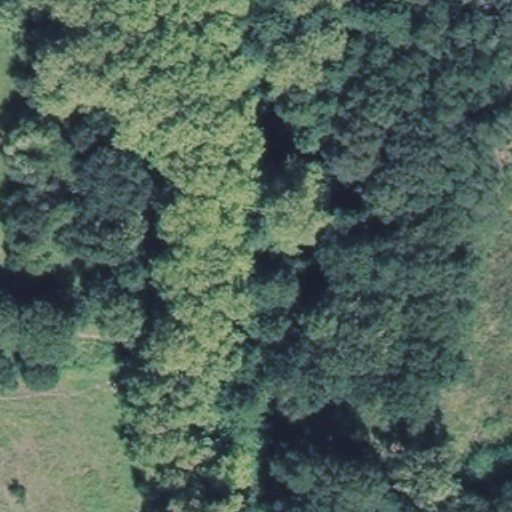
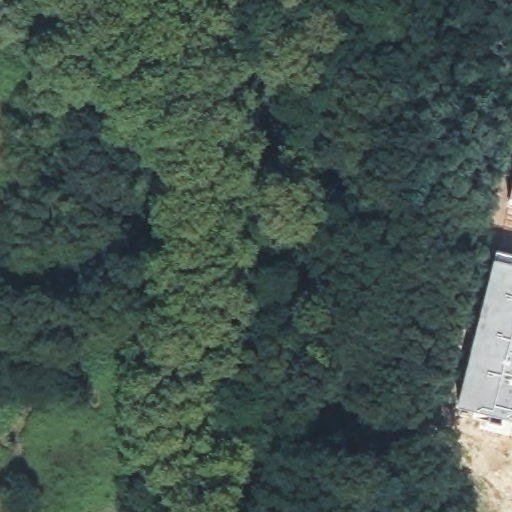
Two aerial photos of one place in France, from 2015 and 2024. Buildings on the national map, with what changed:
new [(512,185),(512,201),(508,200),(512,185)]
new [(496,249),(512,253),(512,423),(457,406),(496,249)]

